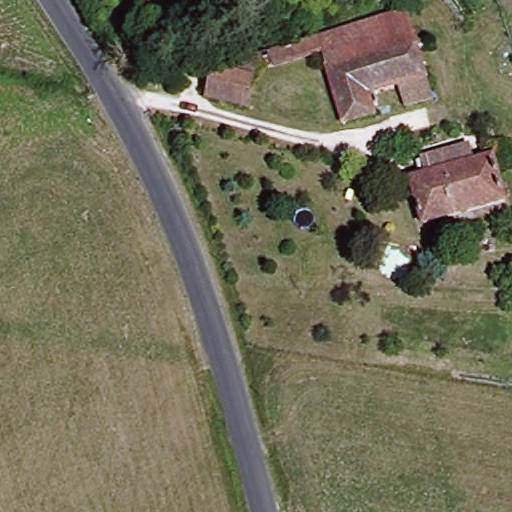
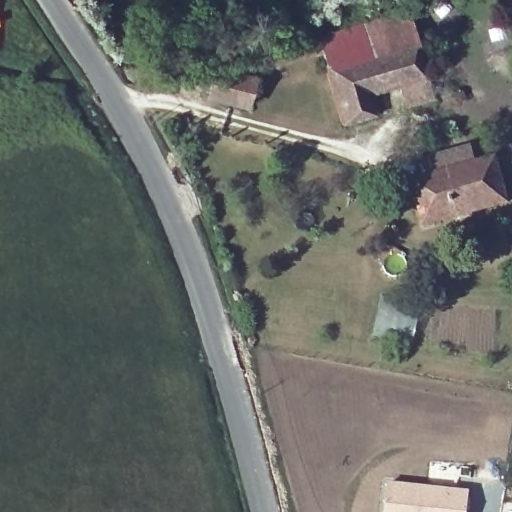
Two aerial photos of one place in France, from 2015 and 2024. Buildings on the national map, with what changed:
unchanged [(413,12),(434,104),(407,111),(401,85),(370,93),(376,119),(342,127),(325,55),(260,71),(255,51),(413,12)]
unchanged [(254,82),(239,112),(204,97),(217,65),(254,82)]
unchanged [(505,206),(419,226),(410,182),(424,178),(421,162),(470,151),(474,167),(495,162),(505,206)]
new [(385,480),(469,490),(466,512),(382,512),(385,480)]

